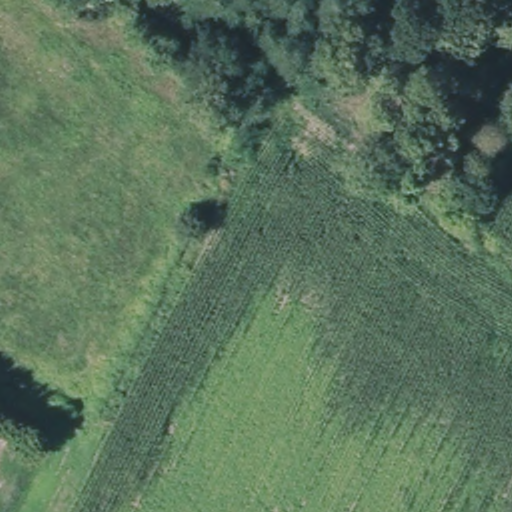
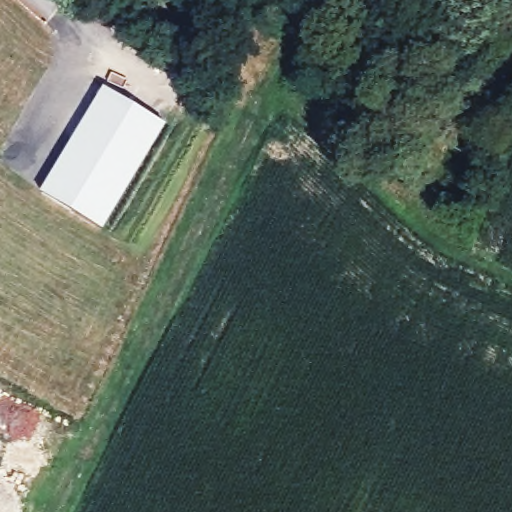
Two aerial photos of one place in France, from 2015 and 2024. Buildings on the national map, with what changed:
new [(166,125),(102,230),(39,193),(103,89),(166,125)]

